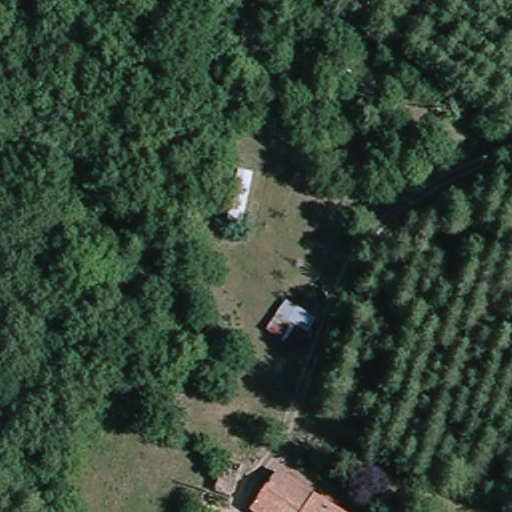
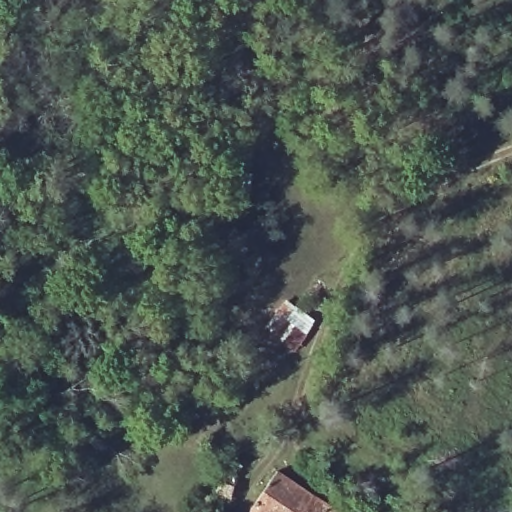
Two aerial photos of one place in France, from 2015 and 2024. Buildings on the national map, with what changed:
unchanged [(249,473),(235,507),(223,500),(233,468),(249,473)]
unchanged [(251,512),(276,473),(338,512),(251,512)]

